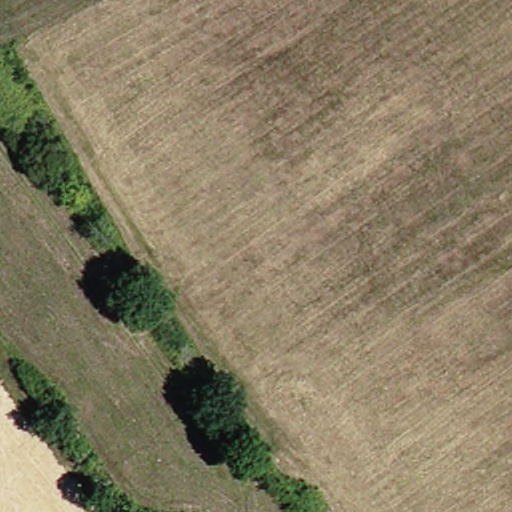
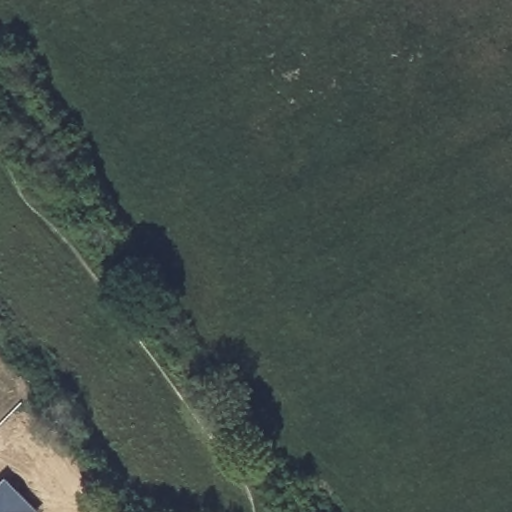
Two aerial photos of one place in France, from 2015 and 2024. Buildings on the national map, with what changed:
new [(4,477),(34,506),(28,512),(0,512),(0,481),(4,477)]

